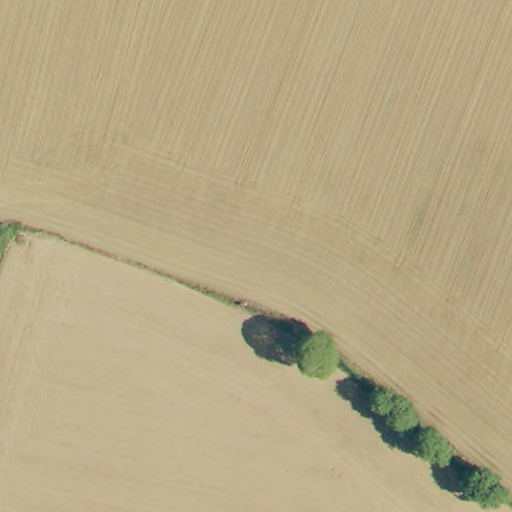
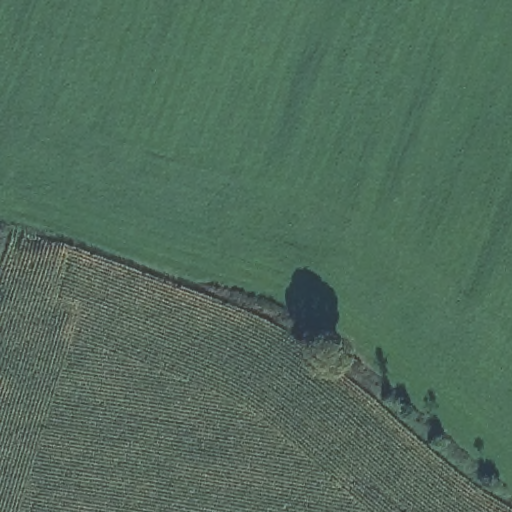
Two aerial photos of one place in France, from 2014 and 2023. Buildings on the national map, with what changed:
[]

